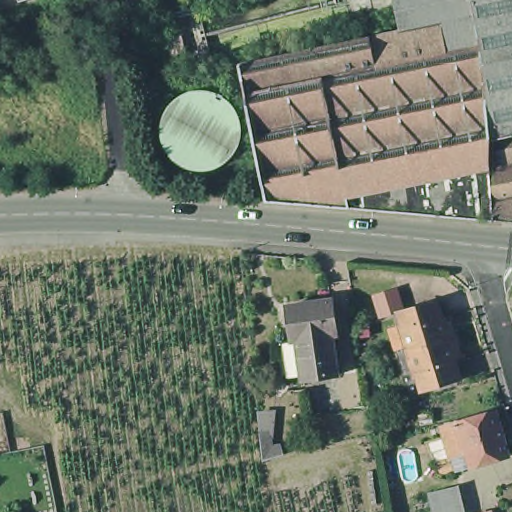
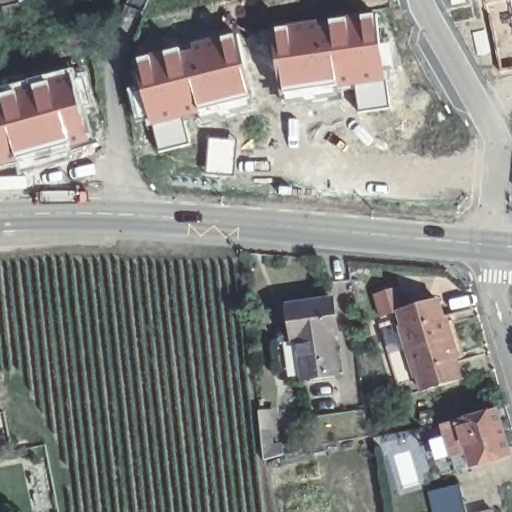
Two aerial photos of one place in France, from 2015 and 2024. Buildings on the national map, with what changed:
unchanged [(16,0),(30,0),(17,5),(16,0)]
demolished [(444,20),(405,27),(400,0),(476,0),(484,36),(484,41),(451,49),(444,20)]
demolished [(484,41),(484,36),(476,0),(512,0),(512,39),(485,45),(484,41)]
new [(276,24),(379,13),(387,80),(281,91),(276,24)]
demolished [(405,27),(444,20),(451,49),(452,52),(404,61),(398,29),(405,27)]
demolished [(491,131),(497,215),(419,208),(271,197),(244,58),(398,29),(404,61),(452,52),(451,49),(484,41),(485,45),(491,131)]
new [(134,57),(236,33),(253,99),(151,126),(134,57)]
demolished [(181,33),(186,51),(173,56),(168,37),(181,33)]
demolished [(485,45),(512,39),(512,127),(491,131),(485,45)]
new [(71,74),(92,141),(0,167),(0,94),(71,74)]
demolished [(491,131),(512,127),(512,216),(497,215),(491,131)]
new [(208,138),(236,140),(233,175),(206,173),(208,138)]
unchanged [(337,295),(341,329),(336,330),(343,369),(308,374),(308,373),(311,372),(306,334),(297,336),(295,321),(292,301),(337,295)]
unchanged [(404,311),(441,300),(453,340),(415,351),(404,311)]
unchanged [(453,340),(465,380),(427,391),(415,351),(453,340)]
unchanged [(512,440),(474,451),(475,452),(447,460),(430,426),(449,421),(447,412),(501,396),(512,433),(512,440)]
unchanged [(274,441),(284,443),(284,452),(252,447),(254,408),(279,408),(274,441)]
unchanged [(466,512),(435,512),(429,492),(459,485),(466,512)]
unchanged [(491,511),(491,512),(487,512),(491,511)]

